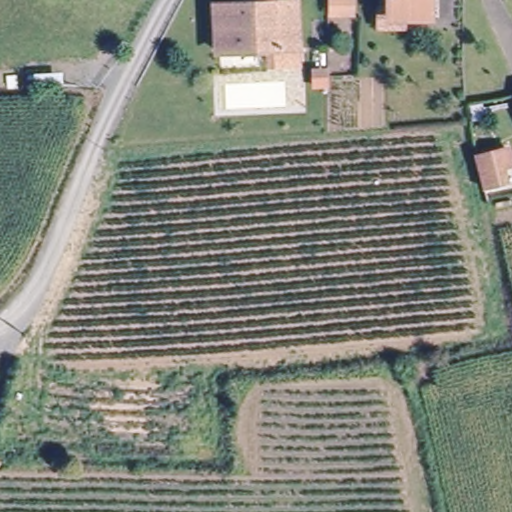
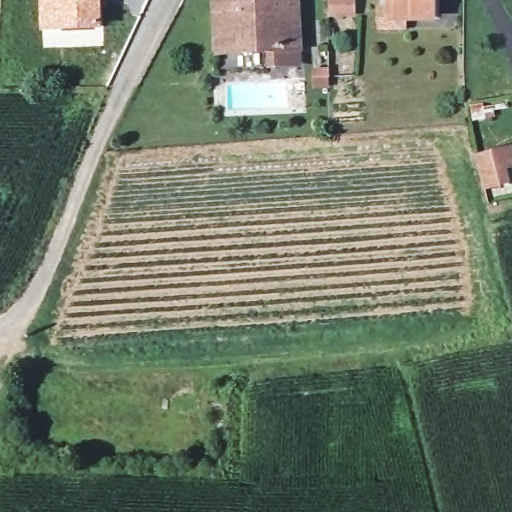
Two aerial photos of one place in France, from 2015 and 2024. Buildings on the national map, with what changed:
new [(42,47),(41,32),(38,0),(103,0),(102,30),(102,45),(42,47)]
unchanged [(352,14),(329,14),(329,0),(352,0),(352,14)]
unchanged [(378,27),(379,7),(390,7),(391,0),(431,0),(431,19),(404,18),(404,27),(378,27)]
unchanged [(293,48),(212,52),(210,7),(291,4),(293,48)]
unchanged [(328,77),(314,78),(313,71),(328,70),(328,77)]
unchanged [(502,168),(492,171),(496,185),(483,189),(475,157),(497,151),(502,168)]

